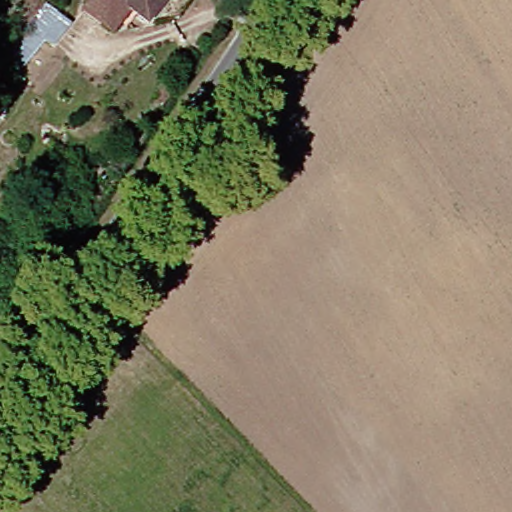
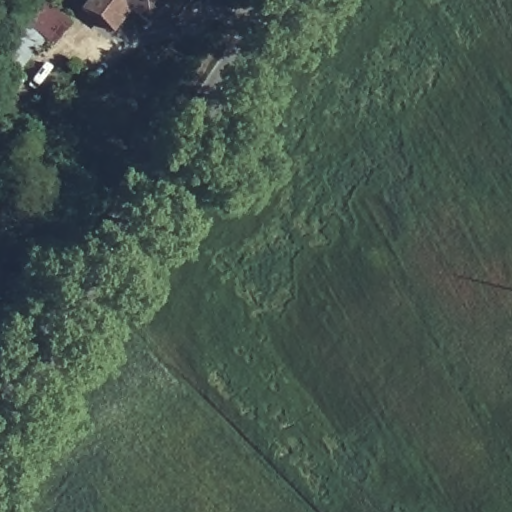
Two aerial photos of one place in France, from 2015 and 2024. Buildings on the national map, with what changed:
unchanged [(177,0),(160,23),(148,14),(126,36),(110,24),(97,14),(108,0),(177,0)]
unchanged [(0,86),(0,75),(42,19),(75,45),(27,105),(0,86)]

